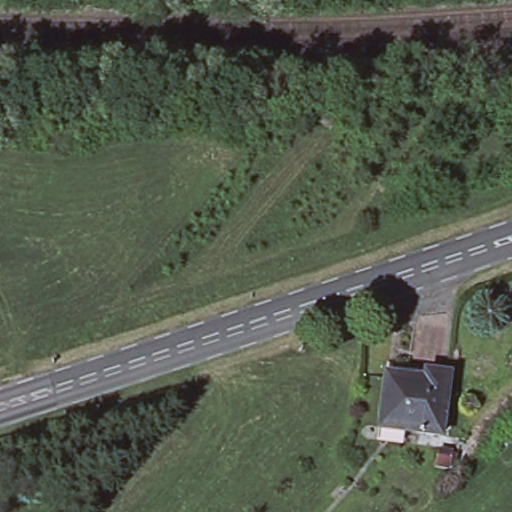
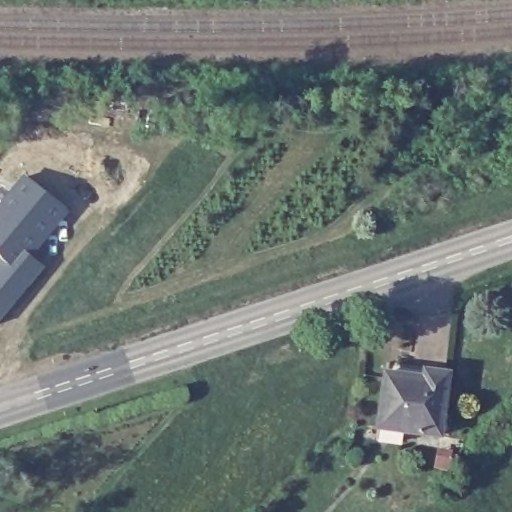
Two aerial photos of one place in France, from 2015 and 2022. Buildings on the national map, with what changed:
new [(64,208),(27,253),(42,266),(0,316),(0,259),(6,252),(0,248),(0,205),(25,176),(64,208)]
unchanged [(387,365),(426,370),(430,373),(449,376),(440,438),(379,430),(387,365)]

